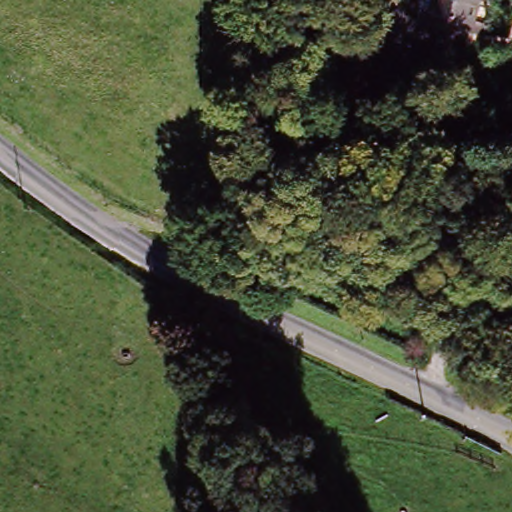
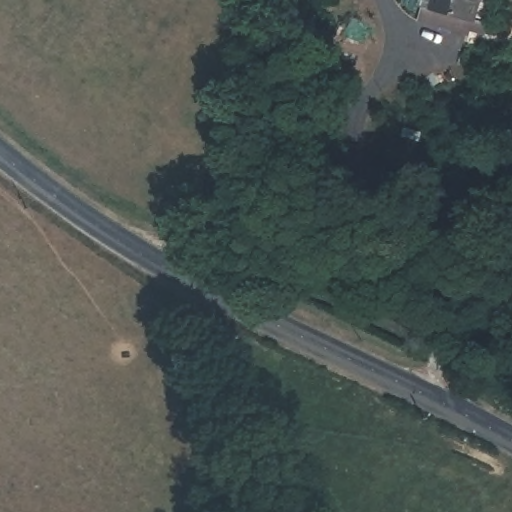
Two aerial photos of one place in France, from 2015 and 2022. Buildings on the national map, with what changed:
unchanged [(424,0),(479,0),(468,38),(418,22),(424,0)]

